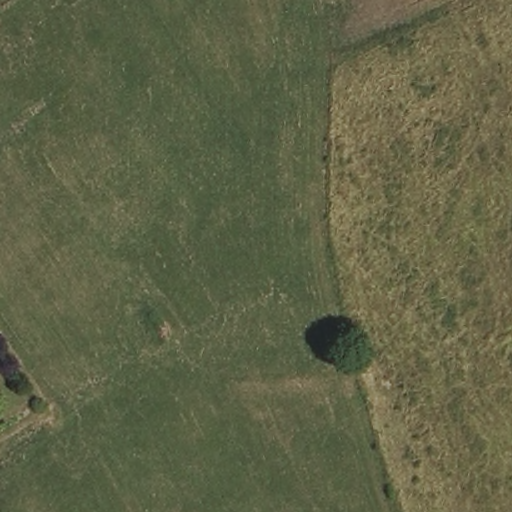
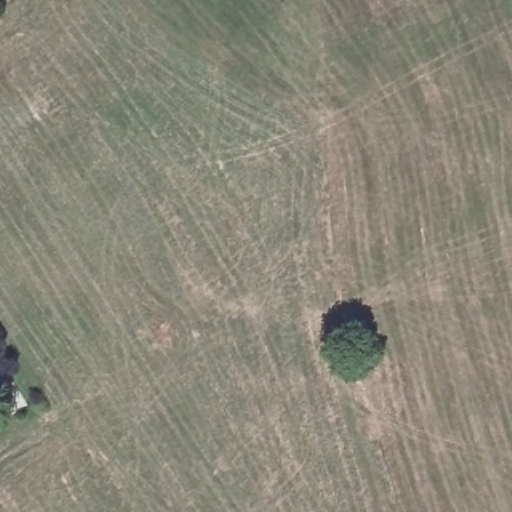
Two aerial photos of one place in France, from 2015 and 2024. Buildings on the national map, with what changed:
[]

